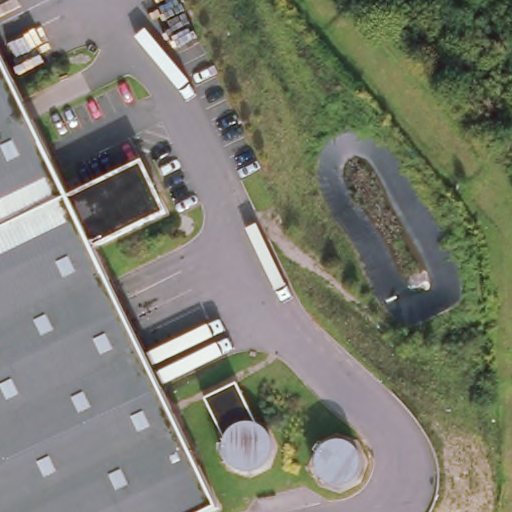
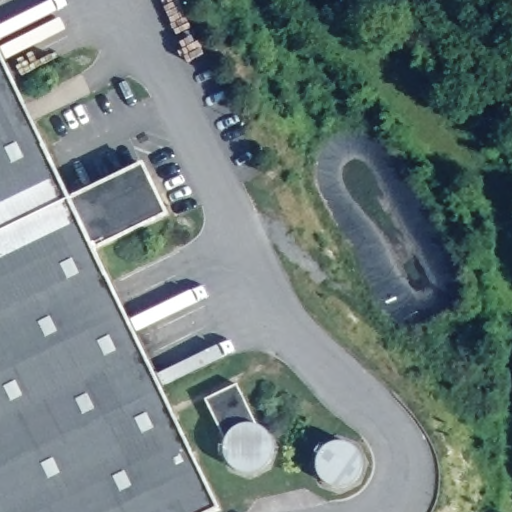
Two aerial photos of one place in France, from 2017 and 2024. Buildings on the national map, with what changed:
unchanged [(141,164),(165,213),(91,250),(217,510),(213,512),(0,512),(0,56),(69,200),(141,164)]
unchanged [(231,467),(222,459),(221,449),(222,440),(206,400),(235,386),(253,423),(264,429),(268,436),(275,449),(272,459),(269,466),(260,472),(233,468),(231,467)]
unchanged [(315,456),(317,449),(323,444),(331,441),(342,438),(351,443),(360,452),(362,467),(357,480),(347,489),(332,488),(320,483),(315,466),(315,456)]

